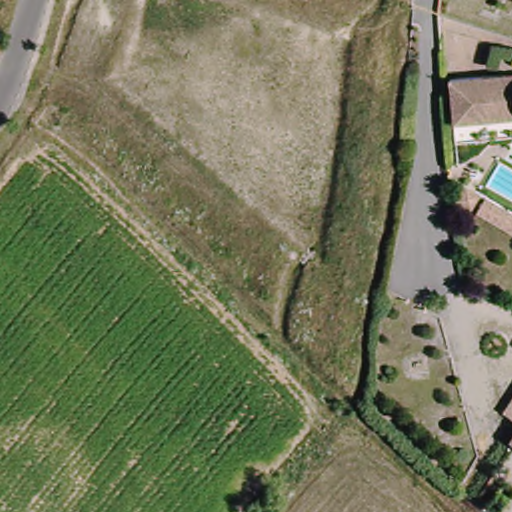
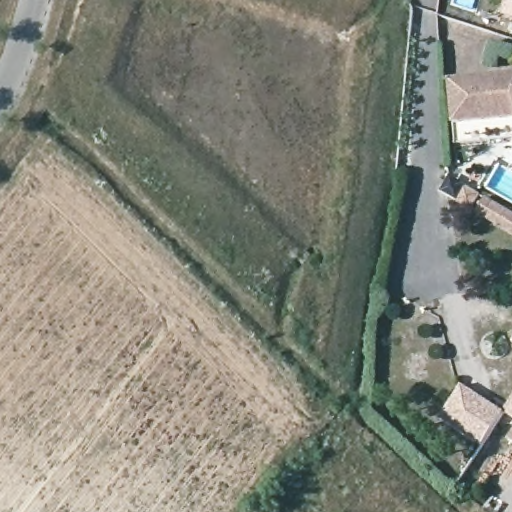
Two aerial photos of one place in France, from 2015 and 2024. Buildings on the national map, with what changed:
unchanged [(461,115),(456,70),(512,65),(512,112),(461,115)]
unchanged [(478,221),(462,211),(471,197),(487,207),(478,221)]
unchanged [(491,209),(512,222),(512,242),(482,224),(491,209)]
new [(478,447),(438,421),(461,386),(501,412),(478,447)]
unchanged [(510,420),(512,417),(512,421),(510,420)]

